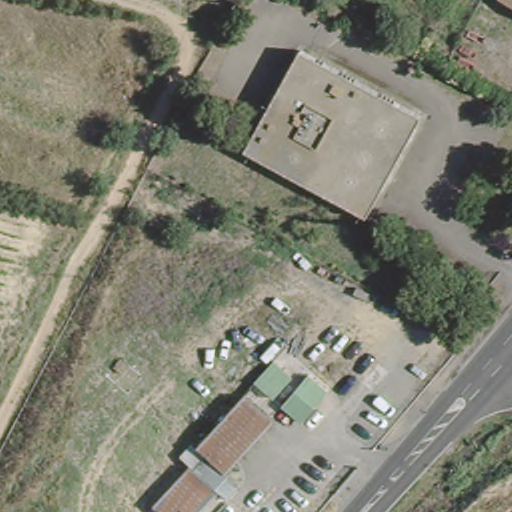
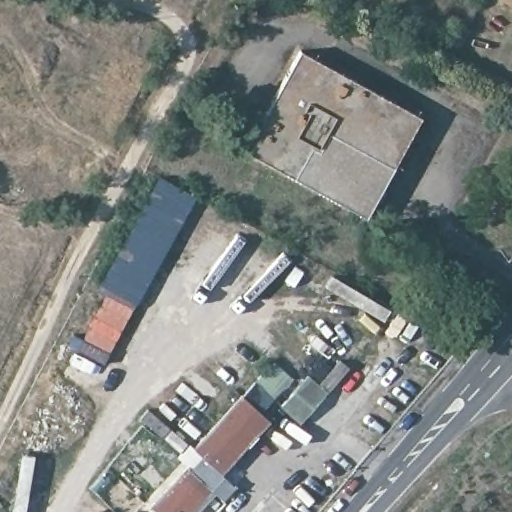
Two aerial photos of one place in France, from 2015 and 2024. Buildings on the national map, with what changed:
unchanged [(500,0),(512,0),(512,11),(499,4),(500,0)]
unchanged [(360,216),(244,142),(306,43),(423,119),(360,216)]
new [(78,343),(107,291),(97,285),(158,175),(195,195),(105,358),(78,343)]
new [(301,373),(321,389),(296,421),(276,405),(301,373)]
unchanged [(185,470),(189,473),(203,456),(194,448),(236,393),(265,415),(221,471),(233,483),(221,498),(211,492),(195,512),(152,512),(185,470)]

